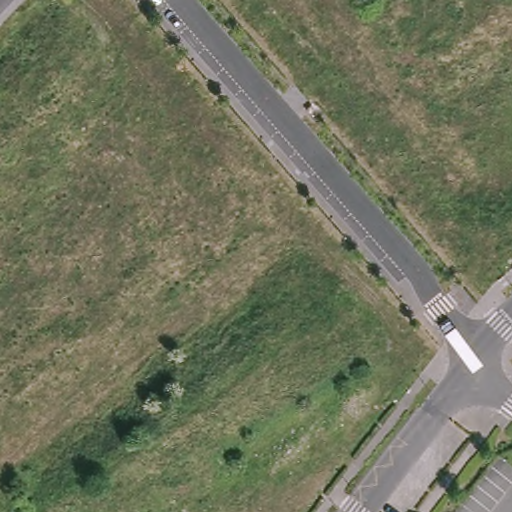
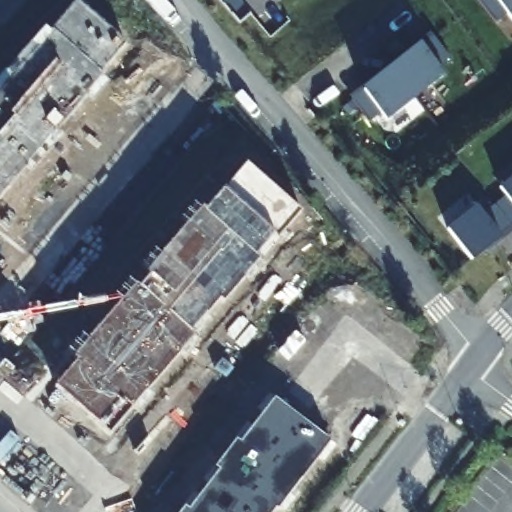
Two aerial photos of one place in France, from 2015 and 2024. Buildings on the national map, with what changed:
new [(509,12),(497,22),(479,1),(481,0),(512,0),(512,17),(509,12)]
new [(99,74),(108,83),(92,101),(85,95),(58,130),(64,136),(30,176),(23,170),(0,199),(0,77),(44,27),(50,33),(76,2),(124,44),(99,74)]
new [(450,55),(439,67),(445,74),(387,120),(383,114),(371,122),(354,100),(434,36),(450,55)]
new [(300,211),(258,261),(223,302),(218,298),(191,330),(194,335),(132,409),(130,406),(109,431),(55,386),(76,361),(73,357),(200,209),(204,212),(223,191),(246,165),(300,211)]
new [(471,259),(448,229),(477,207),(483,215),(507,196),(501,188),(512,179),(512,227),(471,259)]
new [(189,510),(219,471),(216,467),(236,440),(241,444),(275,398),(330,440),(277,510),(274,507),(270,512),(180,512),(184,506),(189,510)]

